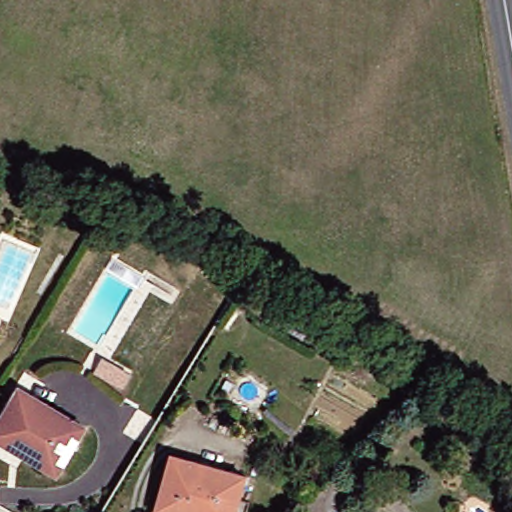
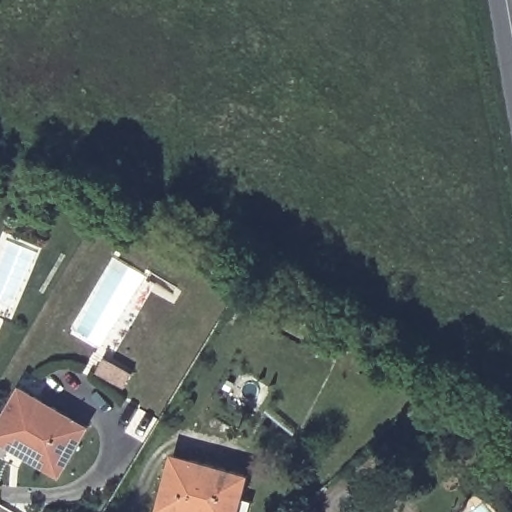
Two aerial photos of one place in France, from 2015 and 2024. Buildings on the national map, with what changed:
unchanged [(0,446),(0,416),(16,389),(82,428),(56,469),(51,478),(10,453),(0,446)]
unchanged [(168,456),(241,476),(231,512),(156,512),(151,511),(168,456)]

